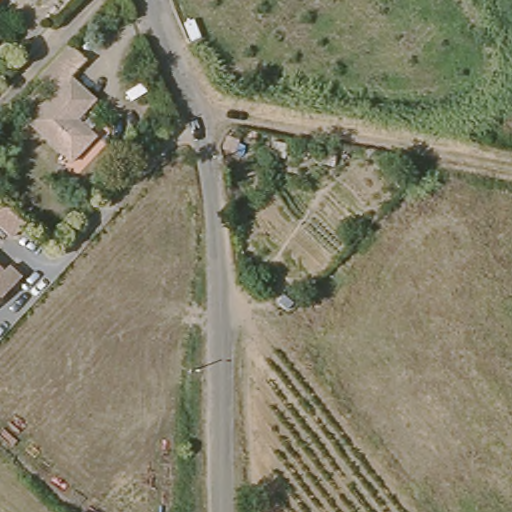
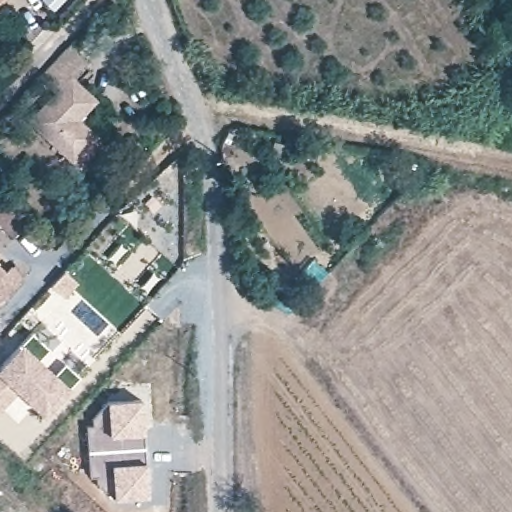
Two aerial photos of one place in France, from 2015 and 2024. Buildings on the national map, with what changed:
unchanged [(90,67),(74,83),(58,100),(41,84),(73,51),(90,67)]
unchanged [(96,143),(71,167),(31,127),(58,100),(74,83),(98,107),(79,126),(96,143)]
unchanged [(7,269),(18,279),(0,299),(0,273),(1,274),(7,269)]
new [(19,341),(69,386),(42,415),(18,394),(0,412),(0,362),(19,341)]
new [(111,499),(111,489),(108,489),(103,490),(95,475),(90,476),(87,452),(86,426),(90,426),(100,407),(101,403),(104,403),(104,399),(141,398),(144,448),(148,497),(111,499)]

